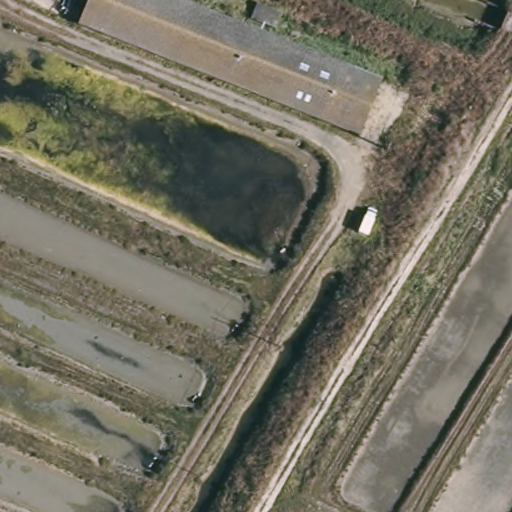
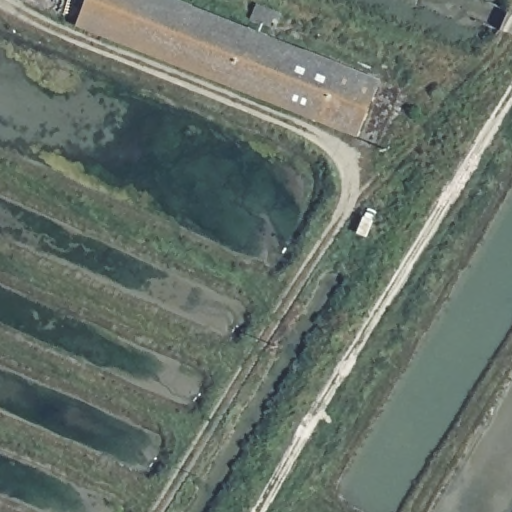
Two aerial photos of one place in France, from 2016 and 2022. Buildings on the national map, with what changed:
unchanged [(235,32),(374,89),(349,137),(207,79),(78,26),(90,0),(158,0),(235,32)]

